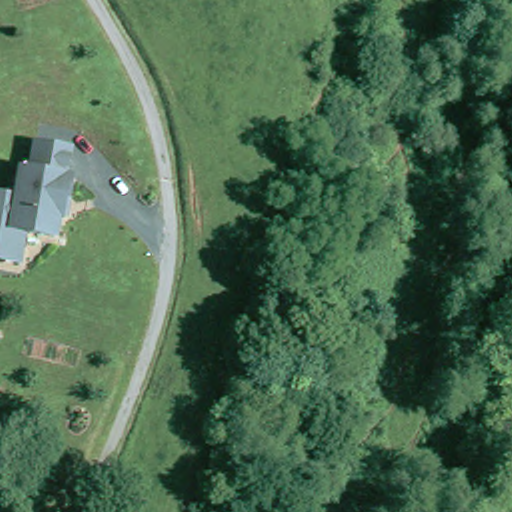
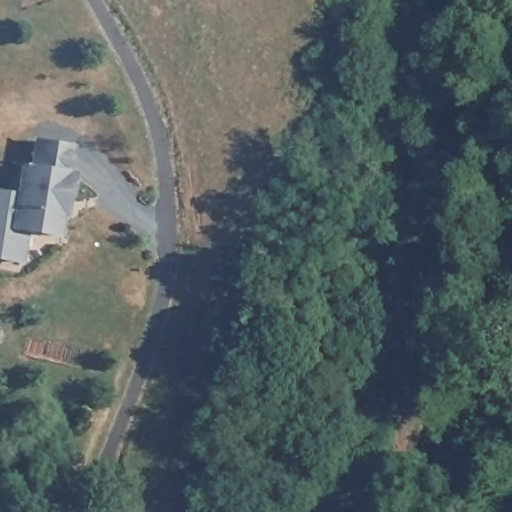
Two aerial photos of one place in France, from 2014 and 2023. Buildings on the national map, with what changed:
unchanged [(58,237),(33,230),(26,261),(0,255),(0,193),(20,197),(25,167),(34,168),(38,141),(75,148),(58,237)]

